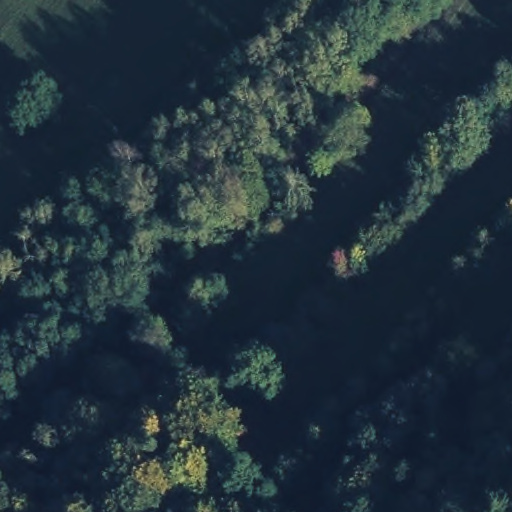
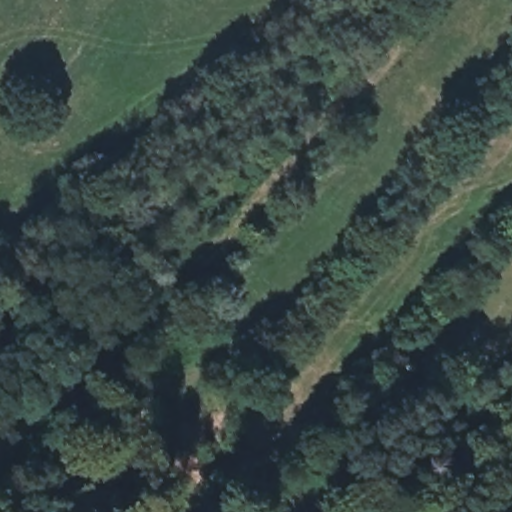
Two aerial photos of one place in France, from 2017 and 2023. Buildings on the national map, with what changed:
[]

